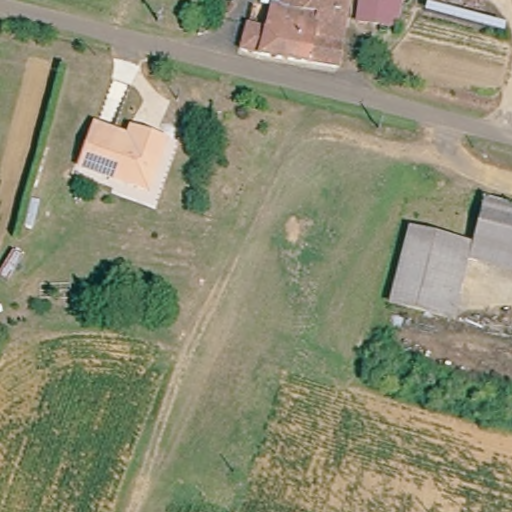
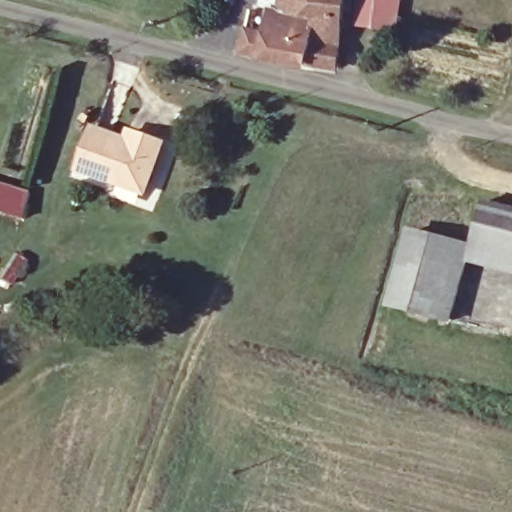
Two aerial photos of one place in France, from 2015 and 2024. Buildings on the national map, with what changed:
unchanged [(234,55),(239,33),(263,38),(269,10),(258,8),(260,0),(341,0),(331,74),(234,55)]
unchanged [(386,12),(382,11),(378,28),(360,24),(365,0),(389,0),(386,12)]
unchanged [(397,32),(378,28),(382,11),(386,12),(389,0),(404,0),(397,32)]
unchanged [(86,176),(93,137),(139,147),(141,137),(164,142),(153,191),(86,176)]
new [(32,194),(23,220),(0,214),(0,184),(32,194)]
unchanged [(512,212),(512,266),(468,255),(480,204),(512,212)]
unchanged [(434,326),(387,315),(404,239),(450,250),(434,326)]
unchanged [(450,250),(468,255),(451,330),(434,326),(450,250)]

